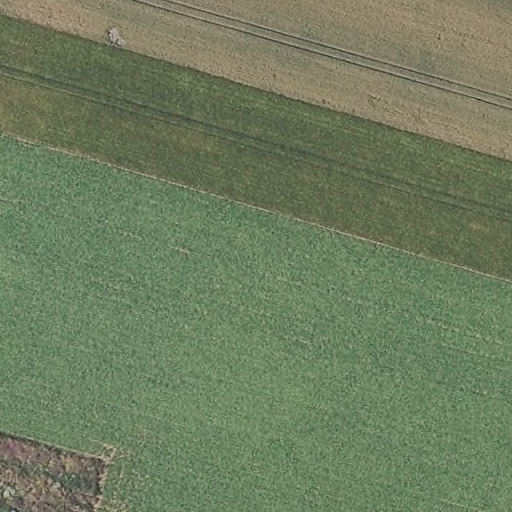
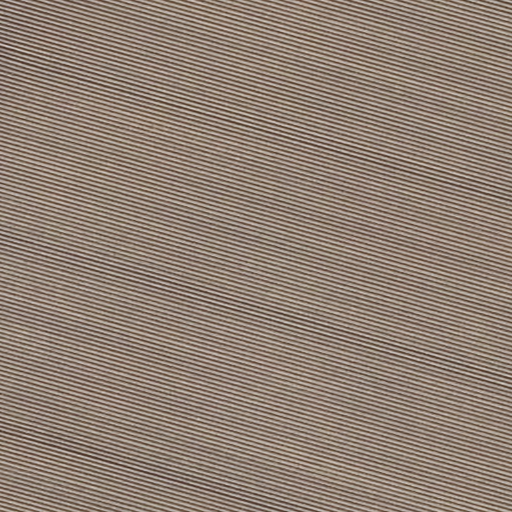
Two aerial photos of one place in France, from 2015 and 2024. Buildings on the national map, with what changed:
[]

